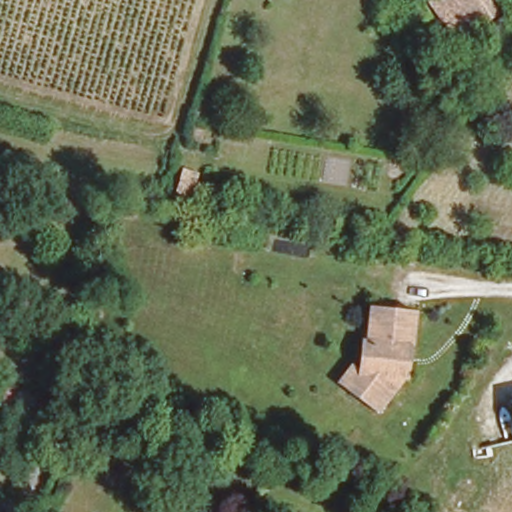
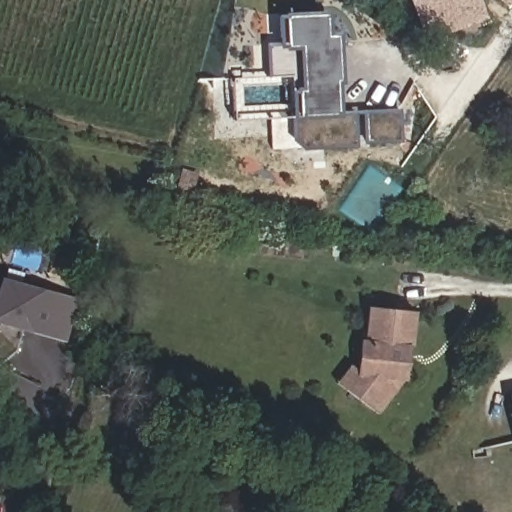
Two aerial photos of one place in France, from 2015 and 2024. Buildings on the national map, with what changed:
unchanged [(486,0),(489,4),(442,34),(427,0),(486,0)]
new [(283,15),(328,14),(328,32),(338,32),(338,115),(353,115),(354,146),(297,146),(296,77),(268,77),(268,47),(284,47),(283,15)]
new [(365,143),(363,112),(400,110),(401,141),(365,143)]
new [(65,339),(21,327),(15,351),(6,360),(0,358),(0,289),(2,281),(75,300),(65,339)]
unchanged [(401,353),(395,352),(391,382),(398,385),(377,412),(363,404),(360,410),(338,395),(352,370),(355,345),(357,345),(361,306),(407,313),(401,353)]

